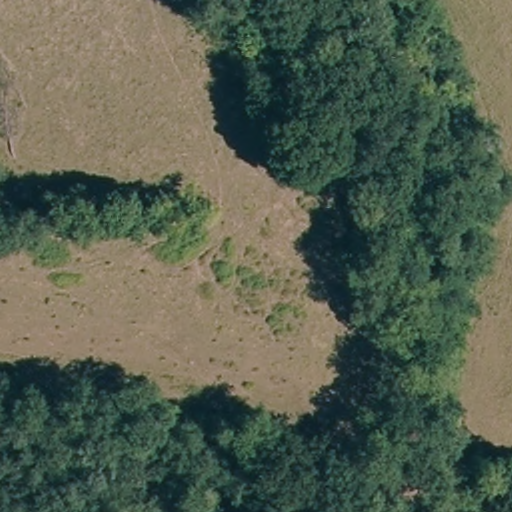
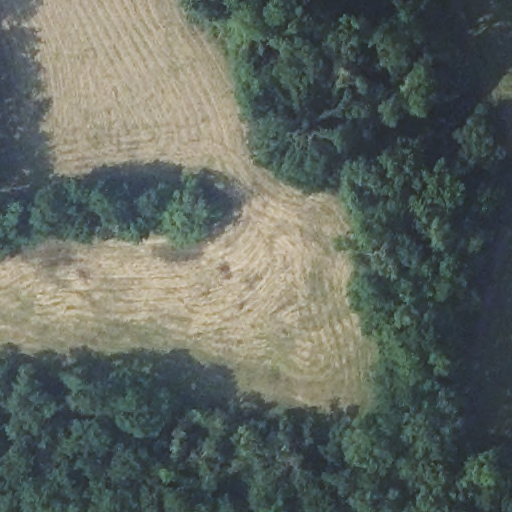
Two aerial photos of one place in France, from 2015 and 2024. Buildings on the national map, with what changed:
[]

